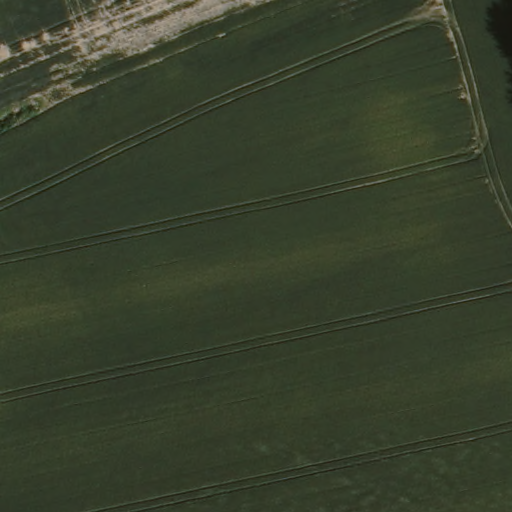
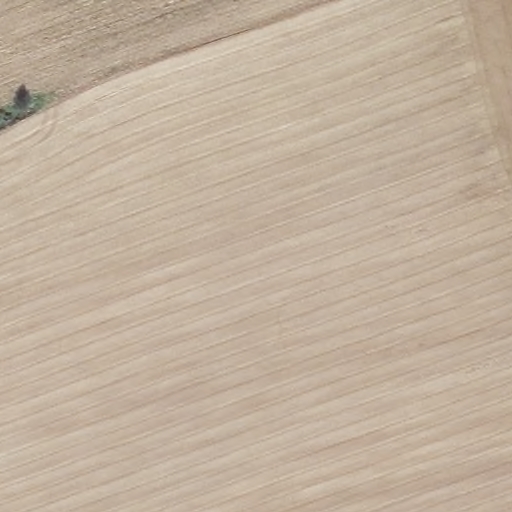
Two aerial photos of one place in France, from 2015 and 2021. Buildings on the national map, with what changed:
[]

